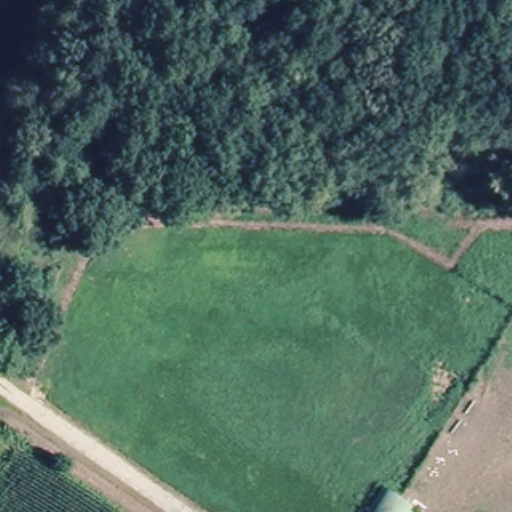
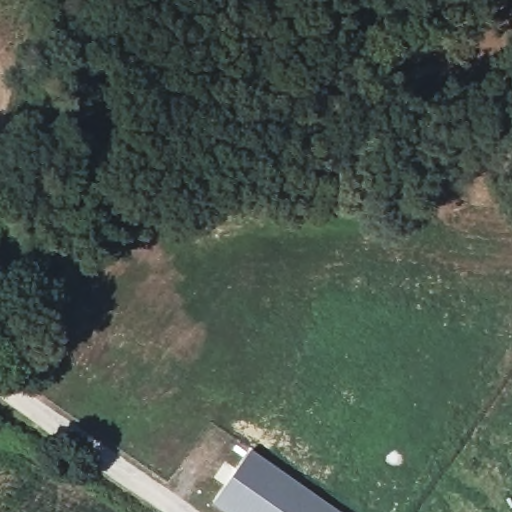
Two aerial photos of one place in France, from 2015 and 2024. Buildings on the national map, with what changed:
new [(212,505),(250,451),(337,512),(222,512),(212,505)]
demolished [(387,490),(417,512),(374,512),(387,490)]

